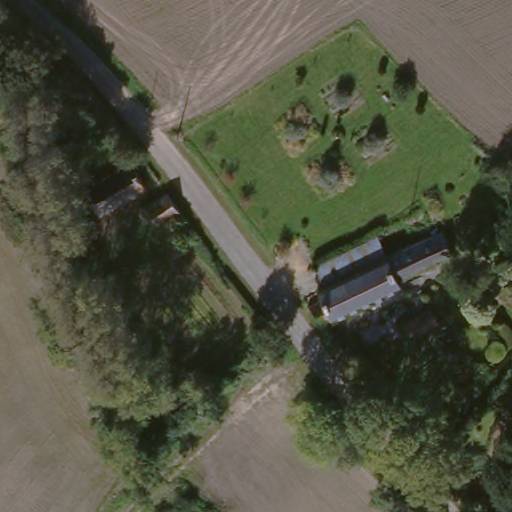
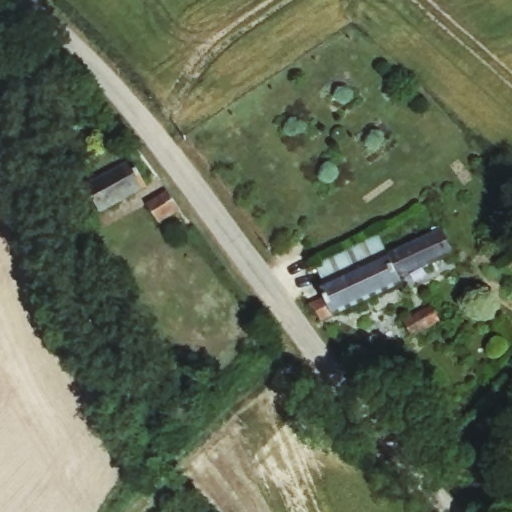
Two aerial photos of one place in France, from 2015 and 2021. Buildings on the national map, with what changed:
unchanged [(96,217),(81,190),(124,166),(141,192),(96,217)]
unchanged [(161,224),(159,221),(149,209),(169,194),(181,210),(161,224)]
unchanged [(446,226),(456,249),(403,274),(393,250),(446,226)]
unchanged [(314,302),(326,294),(324,283),(393,250),(403,274),(406,283),(328,318),(314,302)]
unchanged [(389,340),(406,328),(404,326),(426,307),(439,321),(414,340),(399,351),(389,340)]

